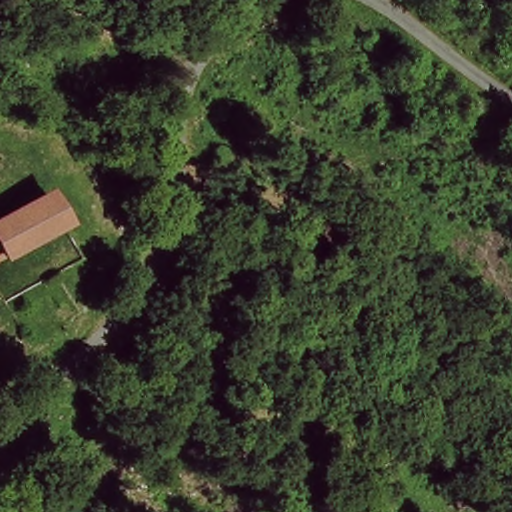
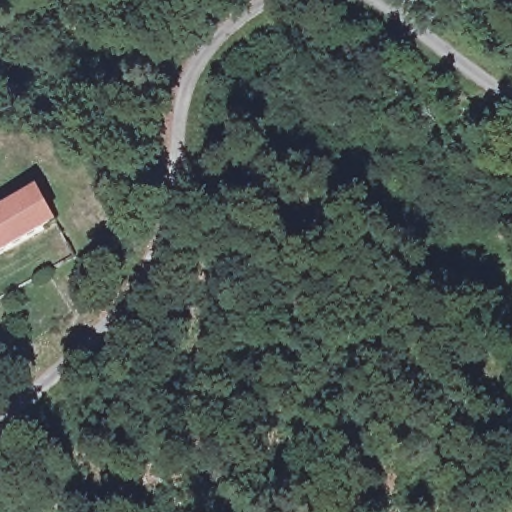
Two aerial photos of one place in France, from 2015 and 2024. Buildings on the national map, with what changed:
unchanged [(58,226),(0,257),(0,208),(37,187),(58,226)]

